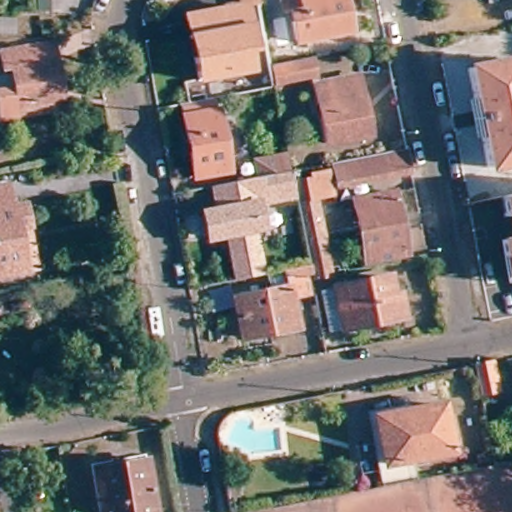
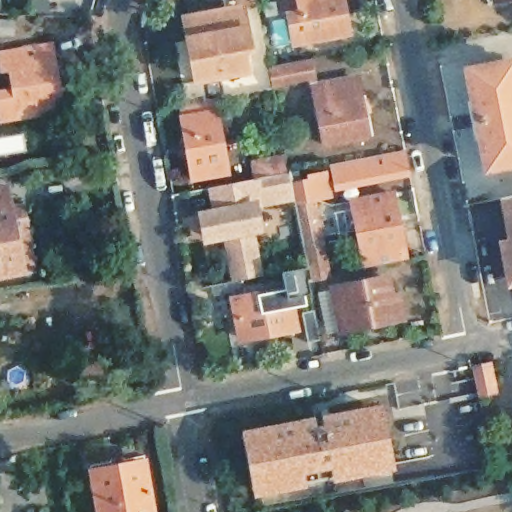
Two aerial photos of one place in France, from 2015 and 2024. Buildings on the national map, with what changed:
unchanged [(345,35),(295,46),(289,23),(302,20),(298,0),(339,0),(345,35)]
unchanged [(492,10),(490,0),(512,0),(512,6),(492,10)]
unchanged [(0,4),(16,5),(17,16),(0,15),(0,4)]
unchanged [(251,59),(246,61),(249,77),(200,86),(188,23),(242,13),(251,59)]
unchanged [(5,120),(1,94),(15,91),(11,69),(0,70),(0,66),(0,55),(51,46),(59,86),(61,99),(64,110),(5,120)]
unchanged [(508,81),(512,80),(512,167),(485,172),(466,71),(505,63),(508,81)]
unchanged [(314,85),(287,90),(282,73),(310,67),(314,85)]
unchanged [(371,145),(327,153),(316,93),(358,85),(371,145)]
unchanged [(222,168),(187,175),(174,104),(180,102),(198,99),(200,111),(211,109),(222,168)]
unchanged [(334,182),(330,161),(405,146),(408,167),(334,182)]
unchanged [(310,267),(297,200),(296,193),(258,200),(263,224),(254,226),(263,276),(236,282),(227,233),(210,236),(205,210),(216,208),(212,184),(255,175),(252,159),(280,153),(283,170),(288,169),(292,168),(294,179),(310,177),(309,173),(323,170),(328,194),(315,196),(323,242),(330,277),(308,282),(306,275),(311,275),(310,267)]
unchanged [(0,276),(0,189),(2,189),(5,207),(17,205),(22,228),(30,271),(16,273),(0,276)]
unchanged [(504,211),(500,191),(512,189),(512,209),(504,211)]
unchanged [(403,261),(364,270),(350,208),(390,199),(403,261)]
unchanged [(500,235),(512,232),(512,277),(508,278),(500,235)]
unchanged [(290,292),(296,325),(241,337),(233,297),(288,285),(287,277),(281,278),(280,273),(310,267),(311,275),(306,275),(308,282),(309,288),(290,292)]
unchanged [(317,291),(332,288),(387,276),(391,294),(398,293),(402,315),(340,328),(326,331),(317,291)]
unchanged [(490,367),(496,396),(476,400),(471,370),(490,367)]
new [(254,498),(241,430),(383,404),(395,470),(254,498)]
demolished [(440,408),(448,456),(410,464),(383,469),(373,422),(382,420),(440,408)]
unchanged [(101,512),(95,478),(149,469),(156,512),(101,512)]
demolished [(376,478),(411,471),(413,483),(378,490),(376,478)]

